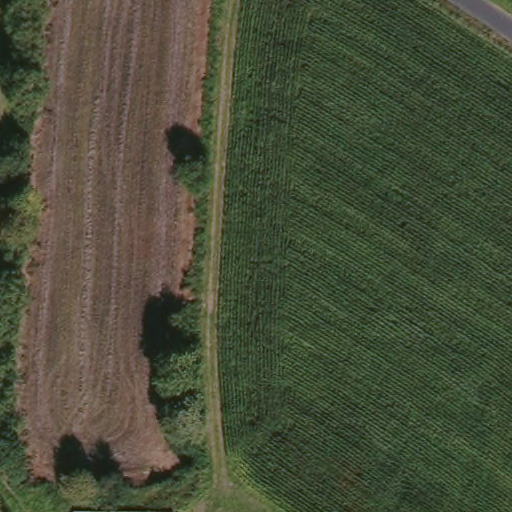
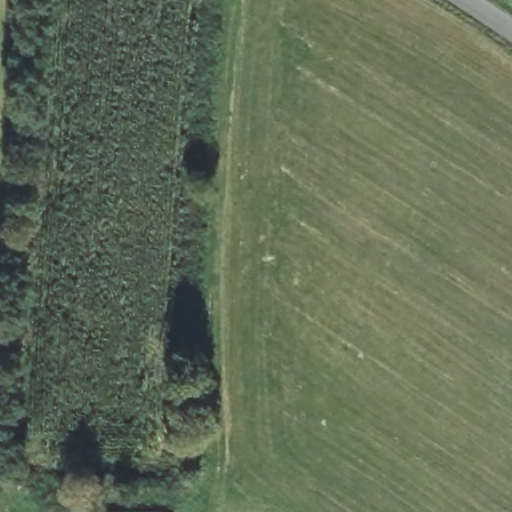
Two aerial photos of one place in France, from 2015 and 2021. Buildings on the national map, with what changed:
[]

